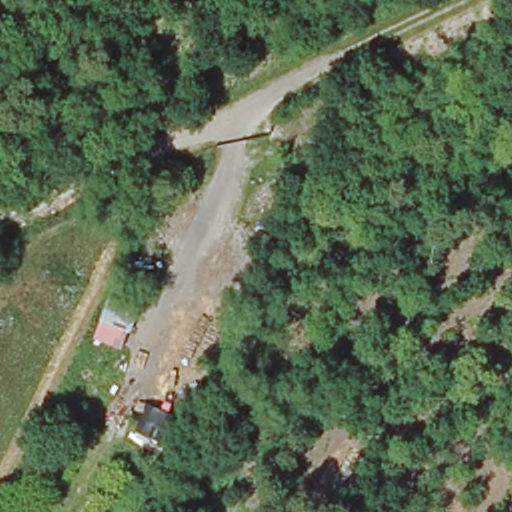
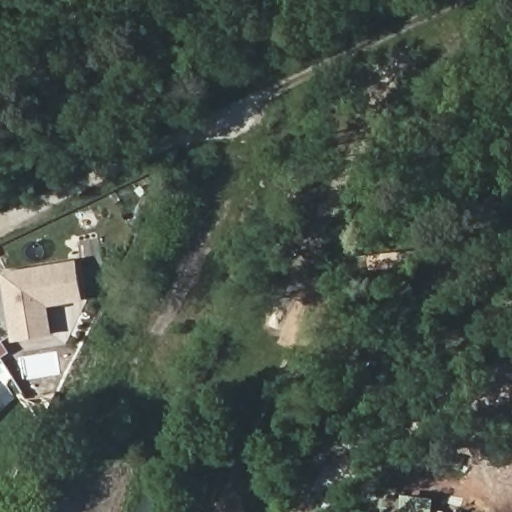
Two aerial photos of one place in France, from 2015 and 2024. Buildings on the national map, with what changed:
new [(49,306),(54,335),(12,341),(2,272),(77,260),(84,300),(49,306)]
unchanged [(145,298),(132,328),(103,318),(115,285),(145,298)]
new [(0,408),(0,399),(5,403),(0,408)]
new [(402,507),(402,496),(433,498),(432,512),(384,512),(385,506),(402,507)]

